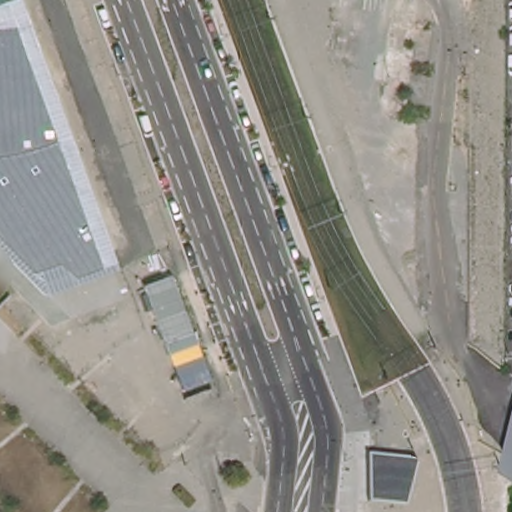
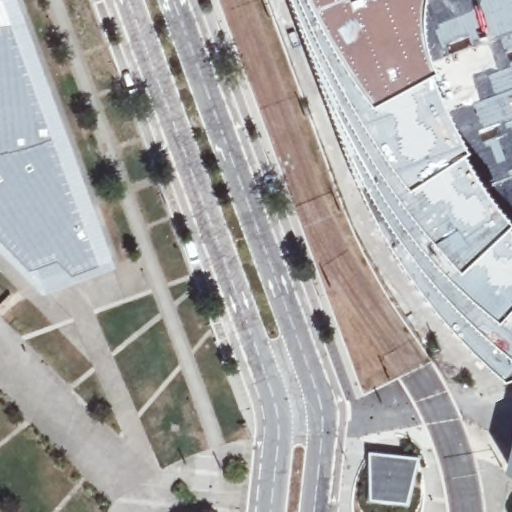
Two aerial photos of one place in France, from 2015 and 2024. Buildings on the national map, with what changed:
unchanged [(109,267),(41,291),(0,249),(0,0),(16,0),(109,267)]
new [(419,8),(420,23),(426,47),(431,63),(365,99),(306,0),(419,0),(419,8)]
new [(512,50),(504,53),(498,35),(487,38),(474,6),(472,0),(512,0),(512,50)]
new [(474,6),(487,38),(473,42),(470,36),(441,47),(431,23),(474,6)]
new [(485,72),(512,60),(512,118),(499,123),(479,133),(469,103),(493,93),(485,72)]
new [(499,123),(512,118),(512,176),(493,182),(472,142),(502,130),(499,123)]
new [(451,148),(444,138),(451,134),(449,129),(454,127),(466,152),(508,216),(452,265),(448,261),(448,262),(408,212),(392,188),(451,148)]
new [(448,261),(452,265),(508,216),(512,221),(512,371),(502,378),(483,360),(487,355),(502,367),(509,360),(482,332),(494,319),(457,285),(441,268),(448,262),(448,261)]
unchanged [(414,508),(402,507),(399,507),(375,504),(374,474),(374,456),(404,459),(408,460),(425,461),(414,508)]

